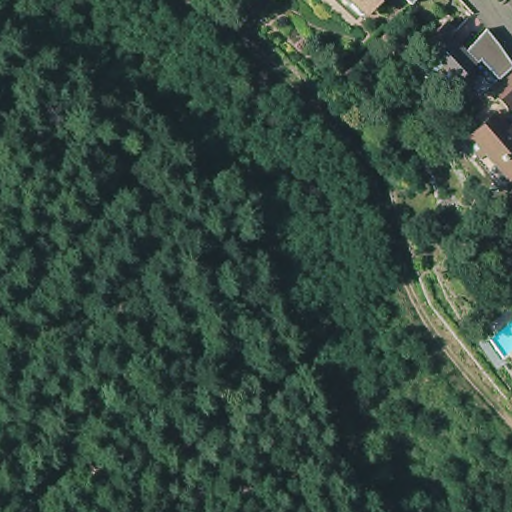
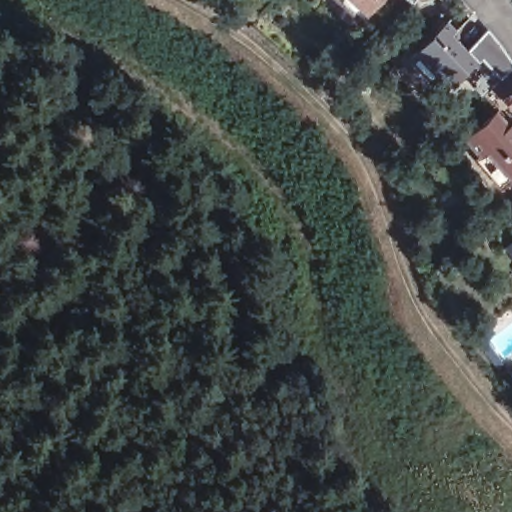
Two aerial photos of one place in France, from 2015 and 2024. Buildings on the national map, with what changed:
unchanged [(361,14),(345,0),(373,0),(361,14)]
unchanged [(403,0),(416,0),(410,7),(403,0)]
unchanged [(441,69),(437,73),(417,52),(451,19),(459,28),(474,15),(499,41),(497,43),(512,59),(512,105),(494,84),(497,82),(478,61),(454,84),(441,69)]
unchanged [(489,183),(456,144),(484,119),(497,134),(501,130),(512,143),(512,149),(512,150),(512,176),(496,190),(489,183)]
unchanged [(512,238),(512,264),(499,247),(512,238)]

